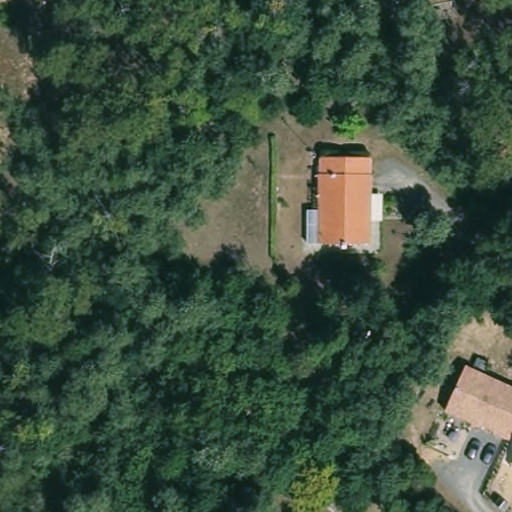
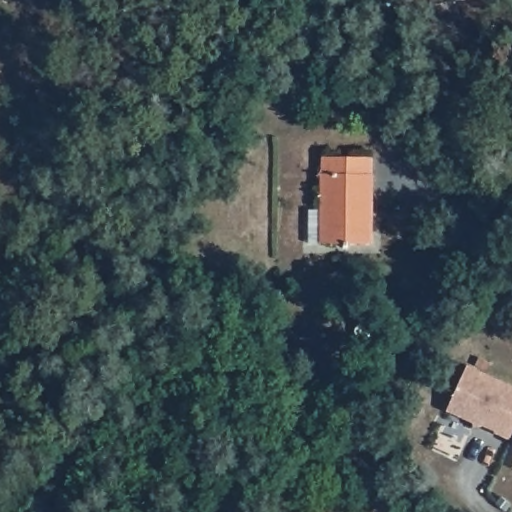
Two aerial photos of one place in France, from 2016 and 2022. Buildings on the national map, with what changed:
unchanged [(365,196),(366,225),(371,226),(371,246),(308,242),(308,211),(317,210),(317,174),(318,159),(372,158),(371,175),(371,194),(365,196)]
unchanged [(317,330),(300,336),(293,320),(310,312),(317,330)]
unchanged [(444,412),(465,366),(512,387),(512,431),(508,440),(444,412)]

